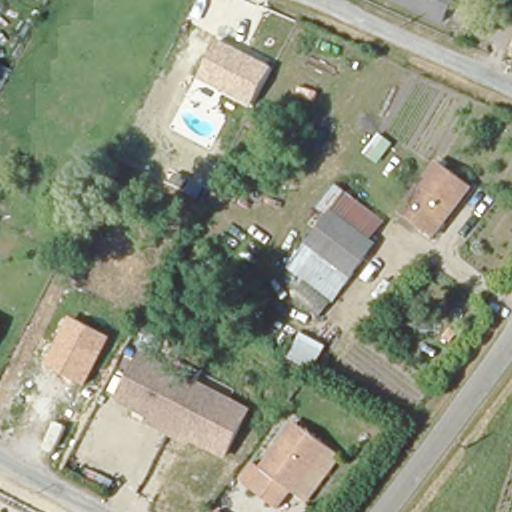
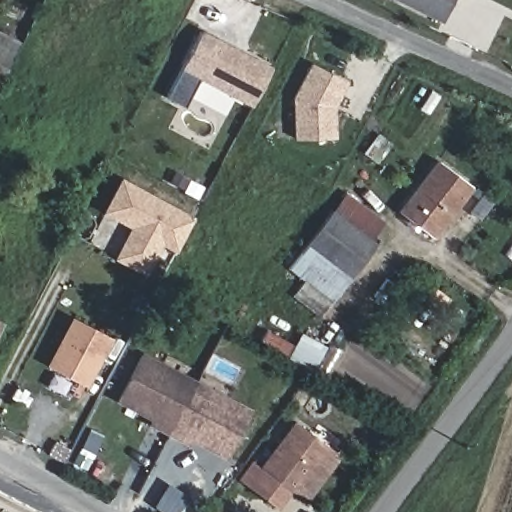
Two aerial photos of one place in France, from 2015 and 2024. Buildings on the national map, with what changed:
unchanged [(397,0),(458,0),(447,24),(397,0)]
new [(23,44),(0,79),(0,34),(3,30),(23,44)]
unchanged [(272,68),(252,105),(198,79),(220,41),(272,68)]
new [(334,138),(297,139),(295,99),(313,65),(344,81),(333,103),(334,138)]
unchanged [(473,190),(434,240),(401,214),(439,164),(473,190)]
new [(172,246),(156,238),(140,269),(112,254),(129,223),(101,208),(117,178),(188,216),(172,246)]
unchanged [(339,204),(328,218),(316,209),(338,184),(383,220),(373,232),(339,204)]
unchanged [(311,238),(328,218),(339,204),(373,232),(379,237),(352,271),(311,238)]
unchanged [(323,313),(296,292),(305,281),(287,268),(311,238),(352,271),(323,313)]
unchanged [(86,387),(46,366),(72,317),(112,338),(86,387)]
unchanged [(288,363),(299,342),(321,354),(311,373),(288,363)]
unchanged [(253,411),(228,459),(191,443),(189,447),(116,409),(144,353),(253,411)]
unchanged [(310,502),(297,494),(294,493),(284,512),(283,512),(252,497),(286,428),(321,444),(336,452),(310,502)]

